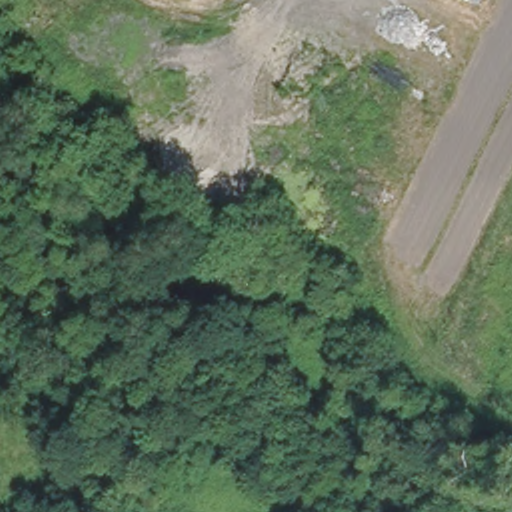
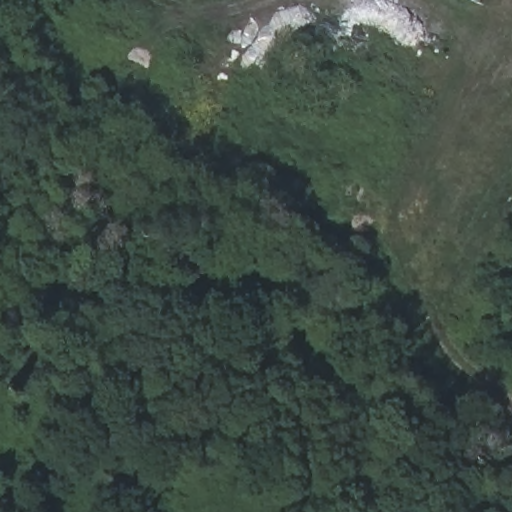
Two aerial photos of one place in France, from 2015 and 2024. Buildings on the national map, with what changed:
unchanged [(464,0),(481,0),(478,7),(464,0)]

